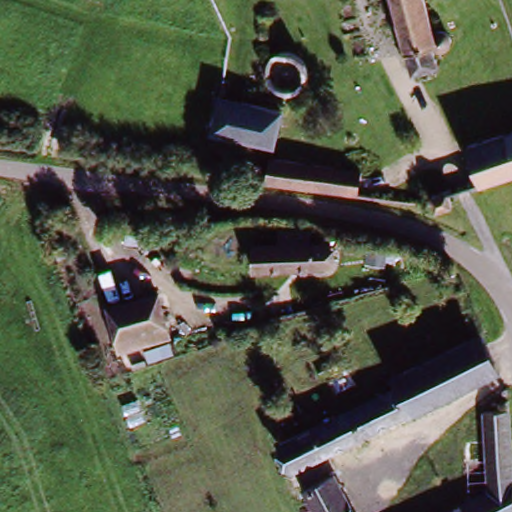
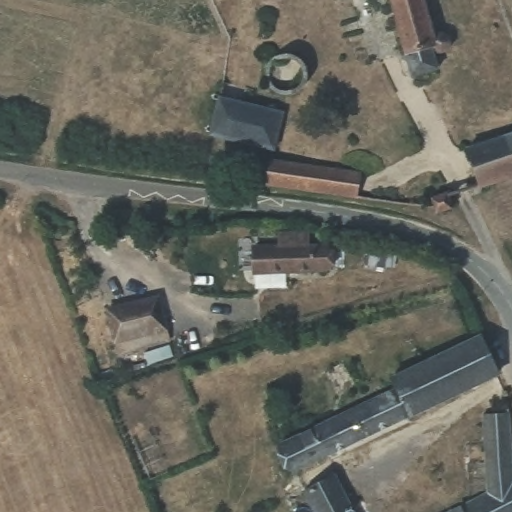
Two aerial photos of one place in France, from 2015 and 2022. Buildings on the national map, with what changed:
unchanged [(426,0),(432,21),(442,18),(451,45),(440,47),(445,67),(420,76),(395,0),(426,0)]
unchanged [(269,101),(262,150),(210,141),(218,92),(269,101)]
unchanged [(512,180),(474,192),(461,153),(512,136),(512,180)]
unchanged [(264,163),(355,175),(352,197),(262,185),(264,163)]
unchanged [(447,215),(432,220),(427,203),(442,199),(444,205),(447,215)]
unchanged [(277,249),(330,249),(329,268),(277,268),(277,249)]
unchanged [(107,303),(156,292),(164,330),(116,340),(107,303)]
unchanged [(270,444),(308,426),(475,345),(487,378),(287,480),(270,444)]
unchanged [(512,429),(512,512),(462,512),(505,487),(473,403),(500,392),(512,429)]
unchanged [(300,490),(328,475),(349,512),(312,512),(300,490)]

